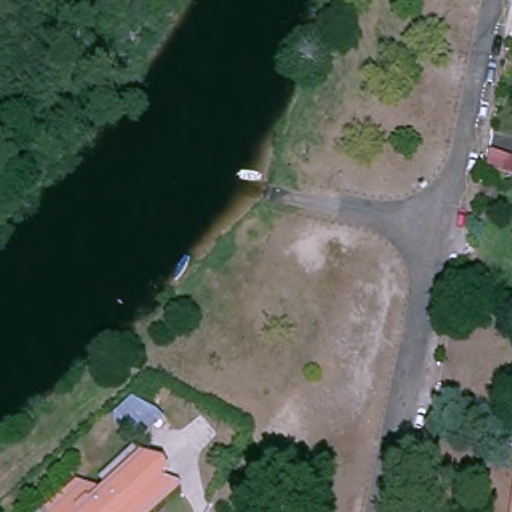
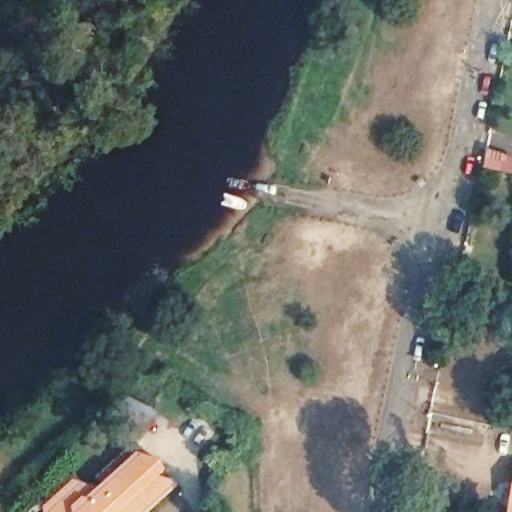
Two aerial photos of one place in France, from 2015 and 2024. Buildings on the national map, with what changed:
unchanged [(148,456),(145,470),(170,475),(133,512),(43,512),(43,511),(67,486),(76,476),(99,483),(132,451),(148,456)]

